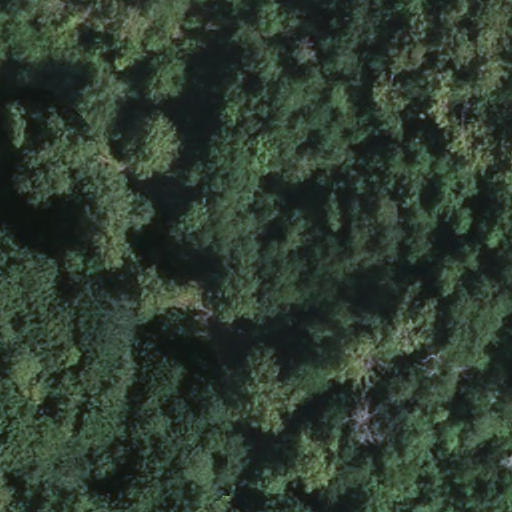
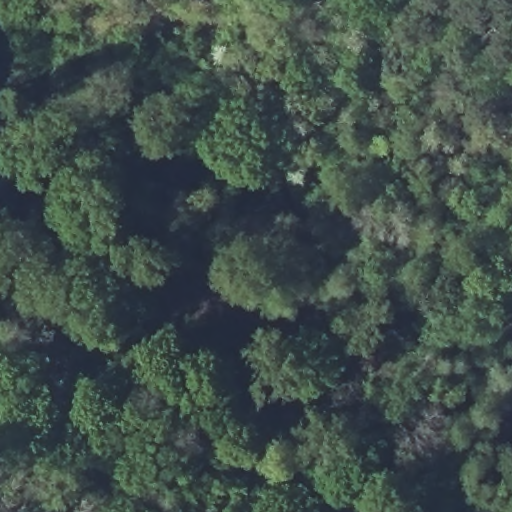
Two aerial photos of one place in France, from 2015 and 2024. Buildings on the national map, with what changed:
unchanged [(94,170),(84,164),(93,150),(104,157),(94,170)]

